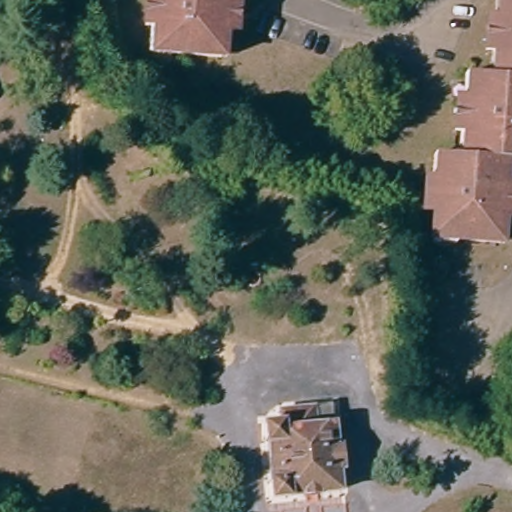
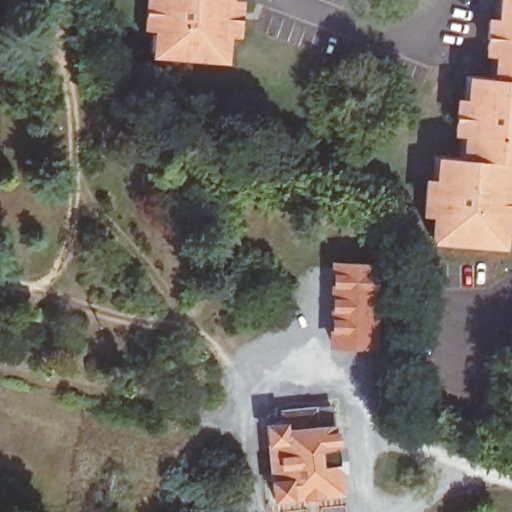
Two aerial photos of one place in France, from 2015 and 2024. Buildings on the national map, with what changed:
unchanged [(233,26),(228,26),(223,25),(220,51),(154,44),(156,19),(151,18),(145,17),(147,0),(236,0),(233,26)]
unchanged [(512,160),(510,160),(505,160),(503,187),(512,188),(512,205),(511,217),(501,216),(498,243),(431,236),(433,211),(423,210),(426,181),(431,181),(435,181),(438,155),(457,156),(462,157),(464,130),(455,129),(457,100),(462,101),(467,101),(469,75),(495,76),(497,51),(493,50),(486,50),(487,21),(499,22),(500,0),(512,0),(512,160)]
new [(327,347),(330,260),(377,262),(375,348),(327,347)]
unchanged [(285,422),(284,412),(316,409),(318,427),(336,426),(338,447),(342,447),(345,468),(340,469),(342,490),(275,496),(268,424),(285,422)]

